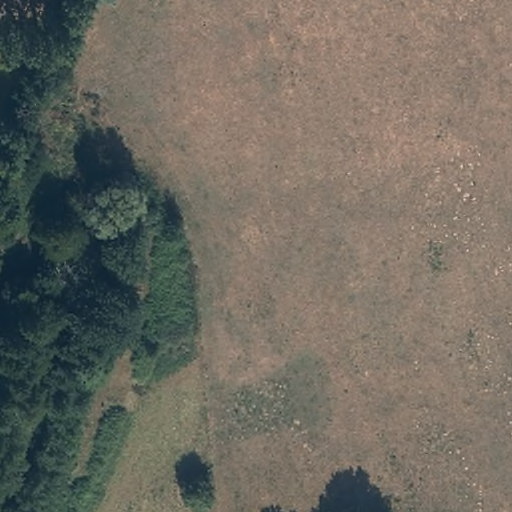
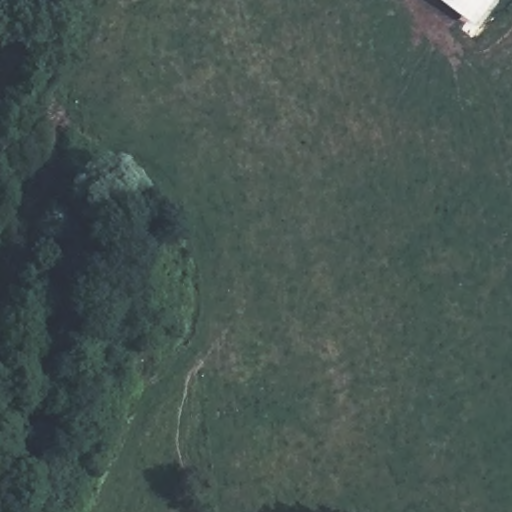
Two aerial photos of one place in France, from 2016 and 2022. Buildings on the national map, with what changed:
new [(479,26),(443,0),(499,0),(479,26)]

